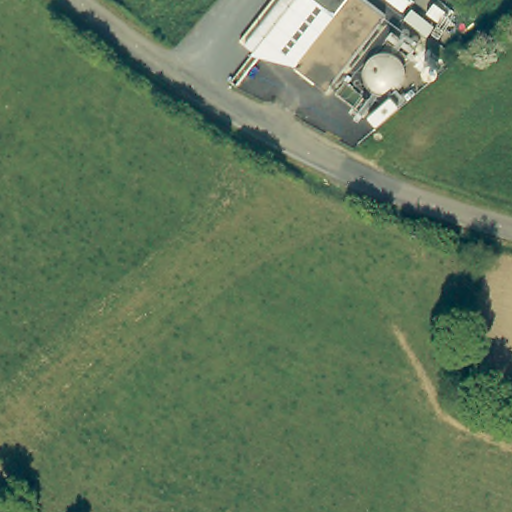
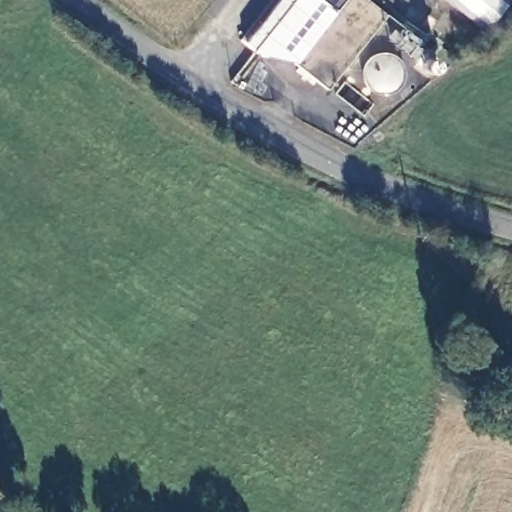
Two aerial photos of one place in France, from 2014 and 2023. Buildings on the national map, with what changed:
unchanged [(257,49),(247,42),(279,0),(315,0),(331,12),(291,64),(253,55),(257,49)]
unchanged [(331,12),(315,0),(361,0),(382,16),(325,90),(291,64),(331,12)]
new [(490,32),(448,0),(511,0),(512,1),(512,5),(490,32)]
unchanged [(411,34),(425,44),(417,55),(404,45),(411,34)]
unchanged [(433,55),(437,54),(441,55),(444,58),(446,62),(445,67),(443,70),(439,72),(435,72),(431,71),(428,67),(427,62),(429,58),(433,55)]
unchanged [(377,104),(368,115),(341,92),(351,81),(377,104)]

